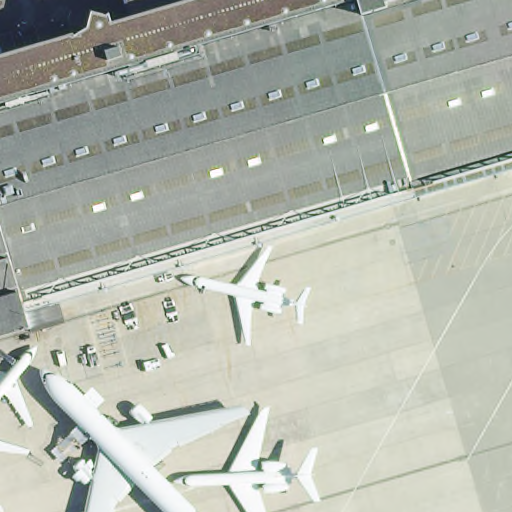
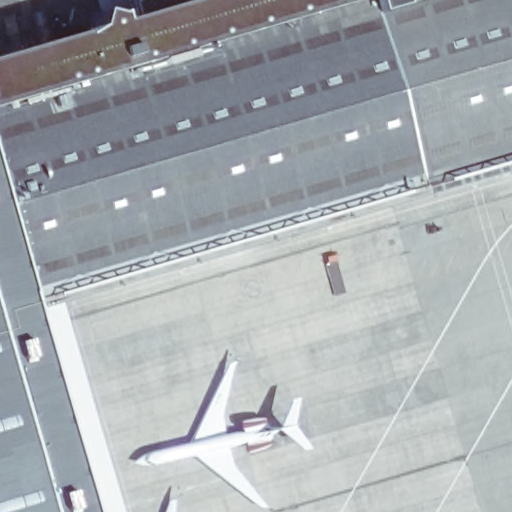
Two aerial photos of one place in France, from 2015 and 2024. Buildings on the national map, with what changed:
unchanged [(128,12),(126,0),(512,0),(512,170),(38,300),(42,325),(0,338),(0,51),(128,12)]
new [(81,512),(0,512),(0,338),(25,330),(81,512)]

